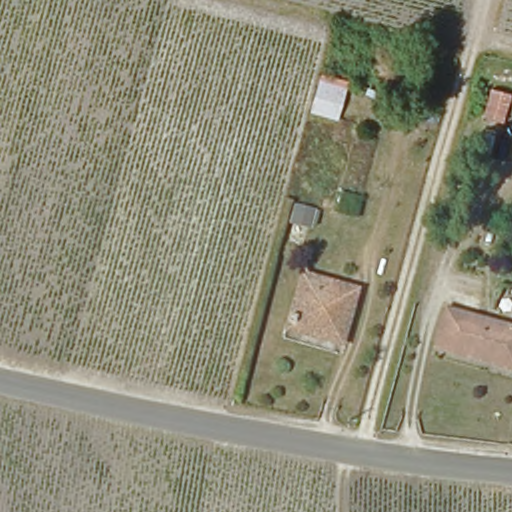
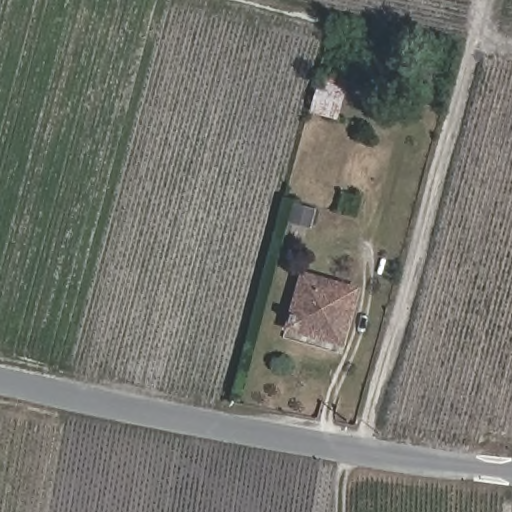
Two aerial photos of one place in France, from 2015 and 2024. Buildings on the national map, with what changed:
unchanged [(337,125),(303,114),(313,74),(347,82),(337,125)]
demolished [(505,96),(498,125),(477,117),(483,90),(505,96)]
unchanged [(335,345),(282,330),(291,287),(295,271),(332,282),(353,288),(335,345)]
demolished [(430,350),(441,311),(512,329),(512,371),(430,350)]

